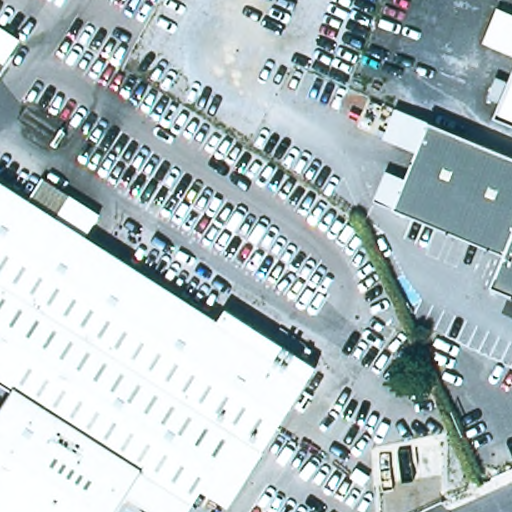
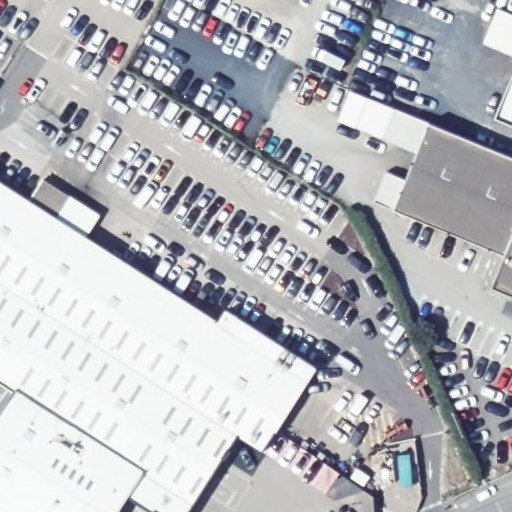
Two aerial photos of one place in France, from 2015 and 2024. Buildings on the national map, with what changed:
unchanged [(490,35),(505,0),(512,3),(512,45),(490,35)]
unchanged [(499,110),(512,79),(512,116),(499,110)]
unchanged [(420,152),(386,138),(399,109),(432,123),(420,152)]
unchanged [(432,123),(512,158),(512,299),(491,290),(505,257),(395,209),(376,201),(389,171),(407,179),(420,152),(432,123)]
unchanged [(0,388),(0,182),(61,223),(72,201),(91,213),(104,222),(92,243),(220,328),(228,315),(320,375),(266,459),(240,442),(216,479),(195,512),(143,512),(127,502),(121,512),(0,512),(0,417),(13,397),(0,388)]

